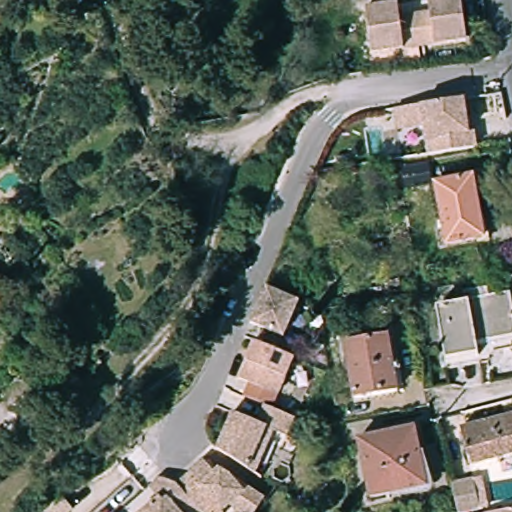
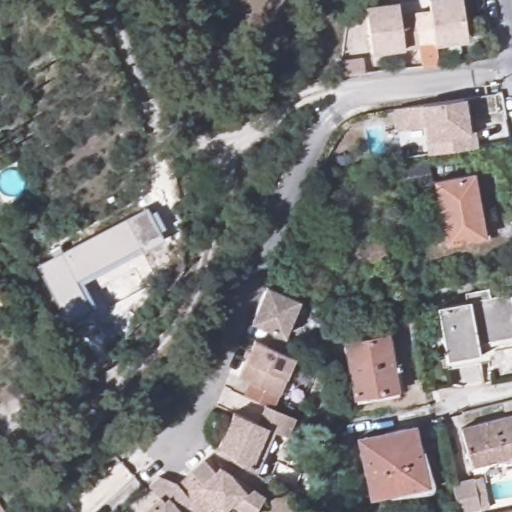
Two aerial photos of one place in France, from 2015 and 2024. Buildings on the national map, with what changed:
unchanged [(408,29),(407,21),(407,16),(422,14),(420,3),(435,1),(441,0),(454,0),(460,44),(412,52),(408,29)]
unchanged [(365,59),(358,12),(390,7),(392,19),(407,16),(407,21),(408,29),(412,52),(365,59)]
unchanged [(464,98),(470,147),(425,153),(422,125),(395,129),(392,109),(464,98)]
unchanged [(468,172),(480,233),(445,241),(433,180),(468,172)]
new [(83,283),(98,310),(68,325),(37,265),(147,205),(165,239),(83,283)]
unchanged [(299,297),(282,335),(247,320),(263,283),(299,297)]
unchanged [(434,309),(464,303),(462,295),(485,291),(487,299),(508,295),(512,317),(512,339),(473,346),(477,370),(446,375),(434,309)]
unchanged [(390,335),(399,391),(355,399),(346,343),(390,335)]
unchanged [(235,411),(259,422),(267,405),(247,396),(252,384),(240,378),(256,341),(295,358),(279,395),(273,408),(297,418),(288,436),(282,433),(263,477),(219,447),(234,412),(235,411)]
unchanged [(467,432),(512,419),(512,458),(477,467),(467,432)]
unchanged [(417,428),(426,479),(410,483),(410,489),(372,496),(359,437),(417,428)]
unchanged [(180,482),(206,459),(217,471),(221,466),(265,496),(255,512),(246,512),(232,501),(225,508),(227,511),(226,512),(206,512),(202,508),(180,482)]
unchanged [(152,484),(162,475),(180,482),(202,508),(198,512),(142,512),(162,495),(152,484)]
unchanged [(456,480),(478,475),(485,506),(462,510),(456,480)]
unchanged [(501,512),(512,510),(512,512),(501,512)]

